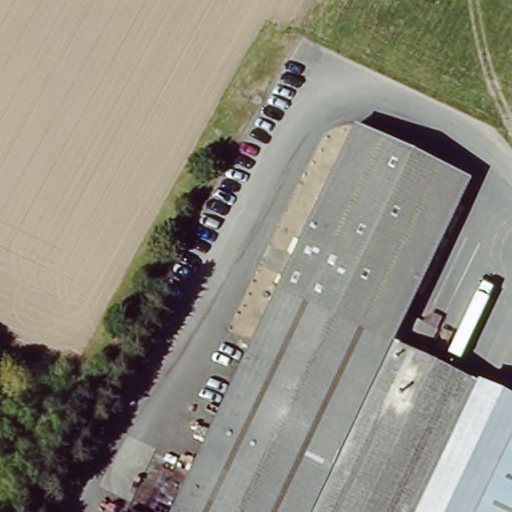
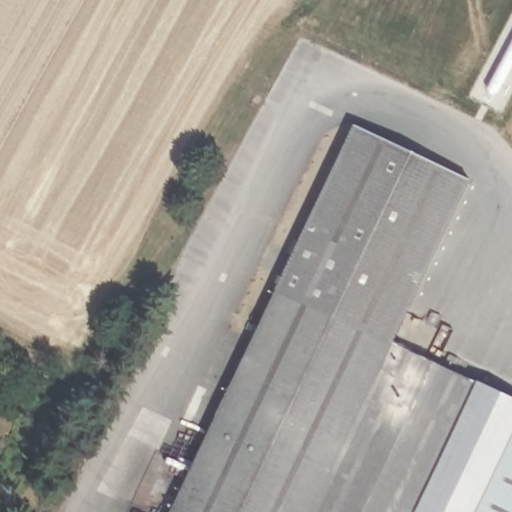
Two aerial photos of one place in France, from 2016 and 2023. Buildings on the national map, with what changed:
unchanged [(352,126),(470,178),(392,347),(373,337),(277,292),(352,126)]
unchanged [(166,512),(272,302),(277,292),(373,337),(285,512),(166,512)]
unchanged [(392,347),(417,358),(478,388),(440,466),(493,492),(483,512),(285,512),(373,337),(392,347)]
unchanged [(478,388),(512,405),(512,512),(483,512),(493,492),(440,466),(478,388)]

